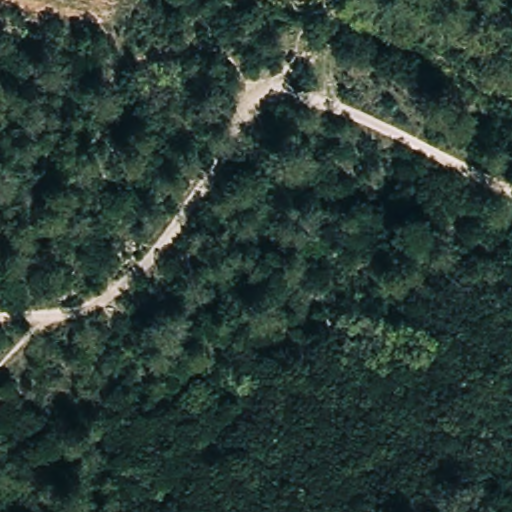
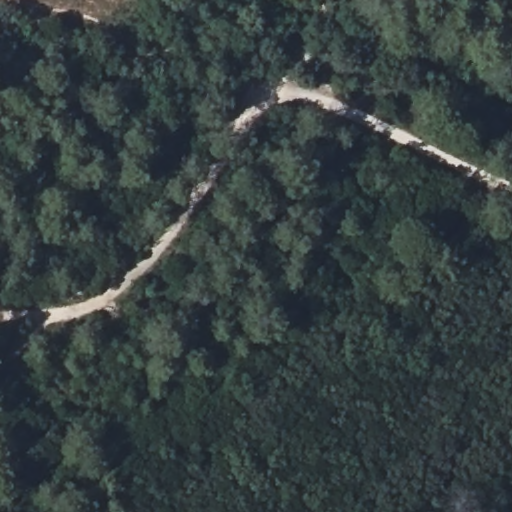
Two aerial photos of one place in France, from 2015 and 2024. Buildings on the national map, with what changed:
unchanged [(300,0),(308,0),(307,4),(300,0)]

